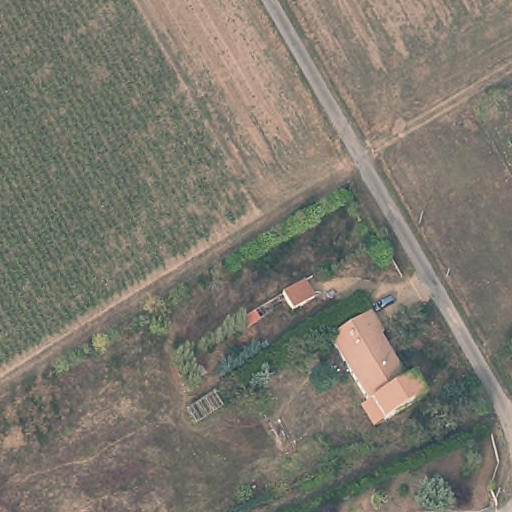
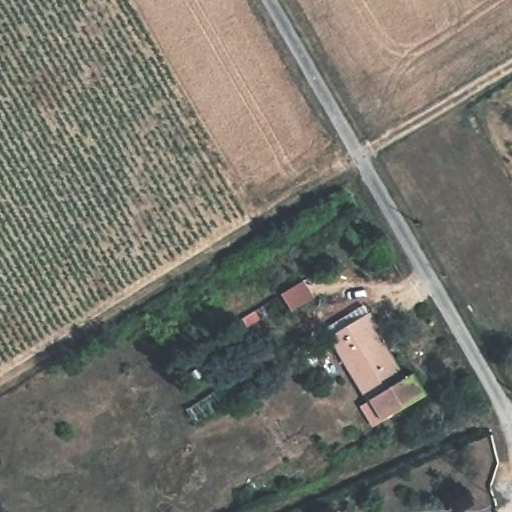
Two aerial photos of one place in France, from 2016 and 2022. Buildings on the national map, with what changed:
unchanged [(288,316),(278,299),(299,286),(310,304),(288,316)]
unchanged [(359,398),(366,394),(327,332),(366,308),(367,307),(380,328),(378,329),(404,372),(412,367),(425,388),(381,412),(371,418),(359,398)]

